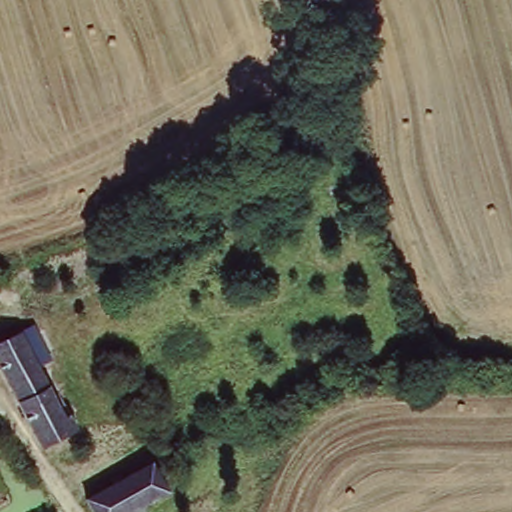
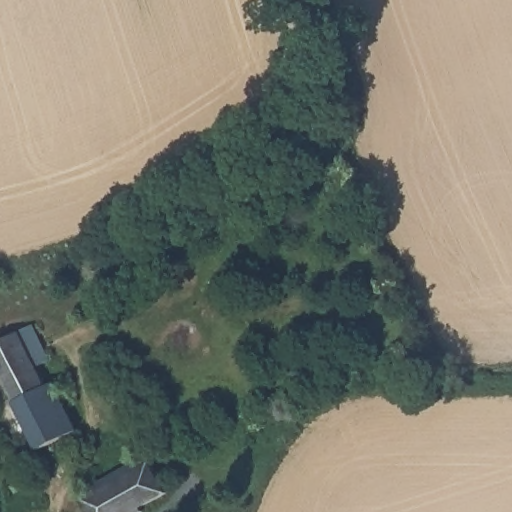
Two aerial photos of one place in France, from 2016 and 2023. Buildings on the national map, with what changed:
unchanged [(55,360),(42,366),(36,370),(61,421),(71,416),(75,430),(39,448),(0,371),(0,341),(26,328),(37,323),(55,360)]
unchanged [(86,468),(145,441),(151,455),(94,483),(86,468)]
unchanged [(83,490),(94,483),(151,455),(167,486),(157,492),(142,500),(142,505),(130,512),(124,512),(123,511),(122,512),(96,512),(94,508),(83,490)]

